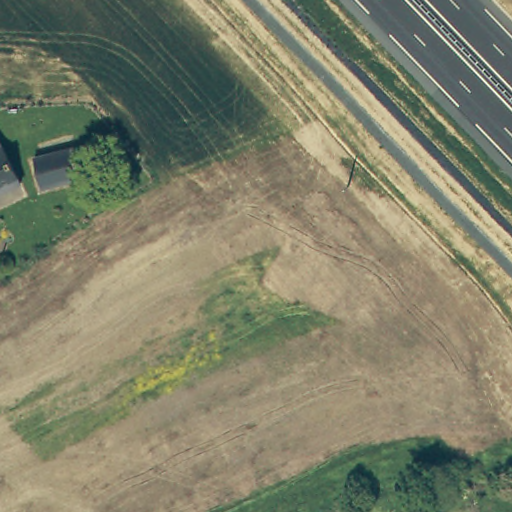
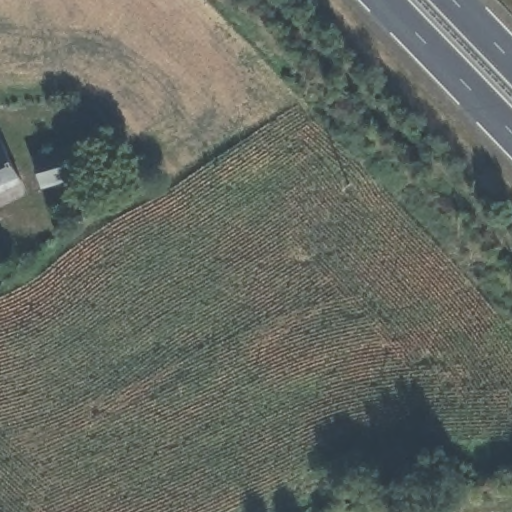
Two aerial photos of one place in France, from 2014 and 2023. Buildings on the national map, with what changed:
unchanged [(21,180),(0,191),(0,133),(21,180)]
unchanged [(81,176),(40,186),(33,157),(74,146),(81,176)]

